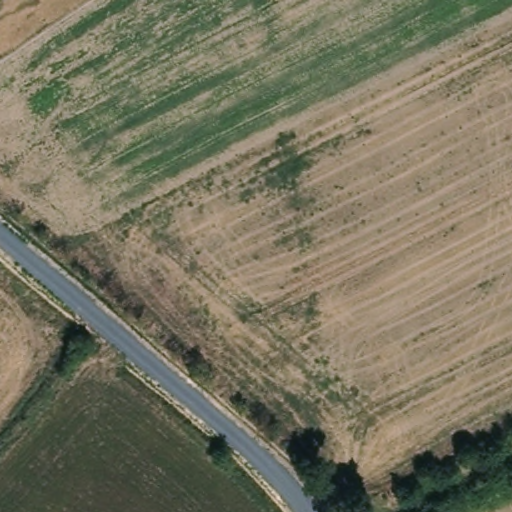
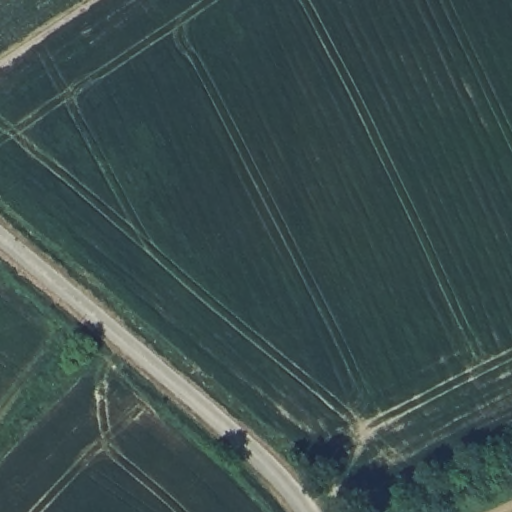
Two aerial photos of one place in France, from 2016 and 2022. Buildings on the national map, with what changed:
[]

